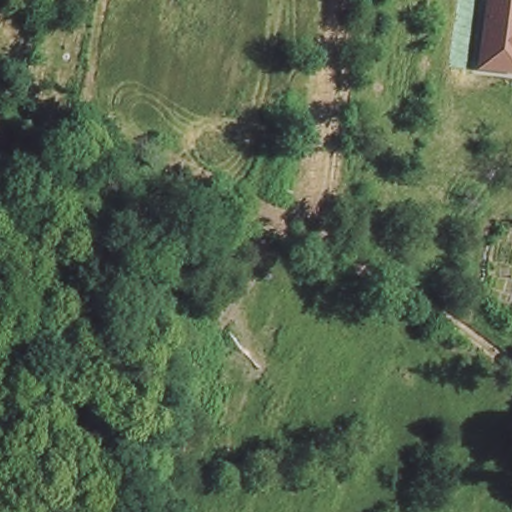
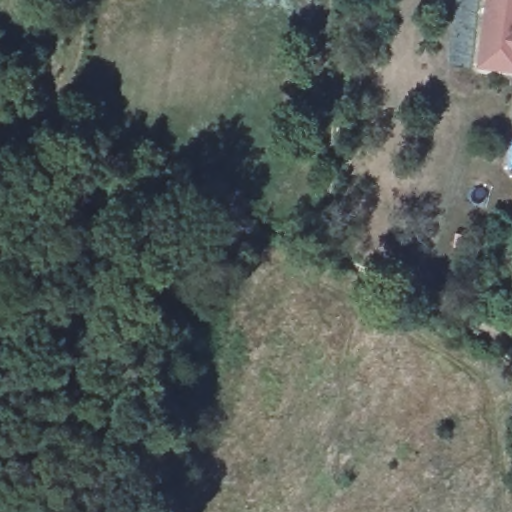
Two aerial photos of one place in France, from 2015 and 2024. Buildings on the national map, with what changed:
unchanged [(476,70),(485,0),(512,0),(512,75),(476,70)]

